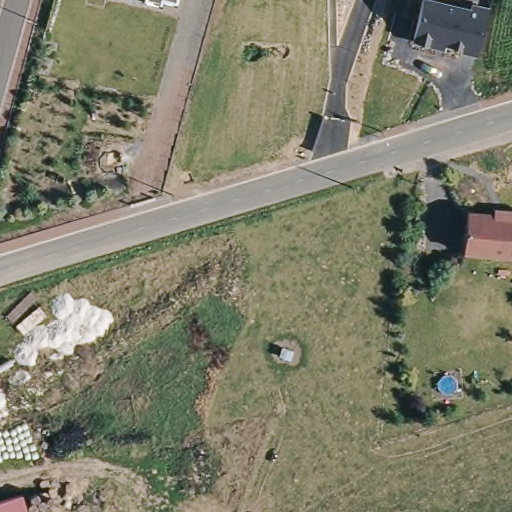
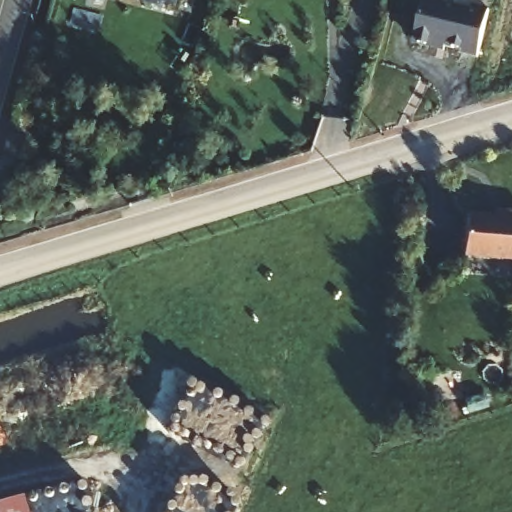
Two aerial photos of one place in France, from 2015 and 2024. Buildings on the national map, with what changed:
unchanged [(163,2),(161,6),(143,2),(144,0),(178,0),(176,6),(163,2)]
unchanged [(473,0),(475,0),(492,4),(479,57),(415,43),(424,0),(447,0),(472,5),(473,0)]
unchanged [(470,244),(474,203),(512,206),(512,201),(512,248),(470,244)]
unchanged [(18,512),(0,512),(0,501),(13,496),(18,512)]

